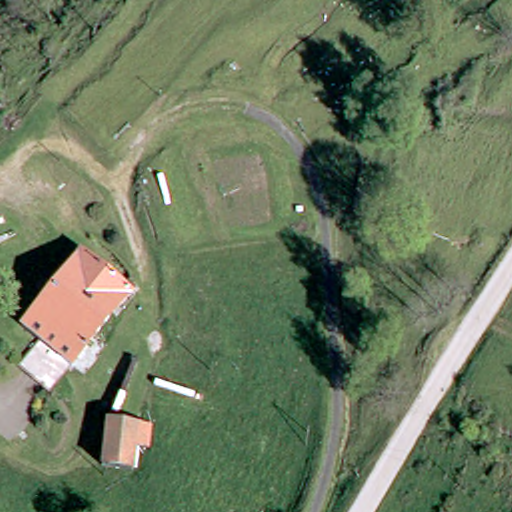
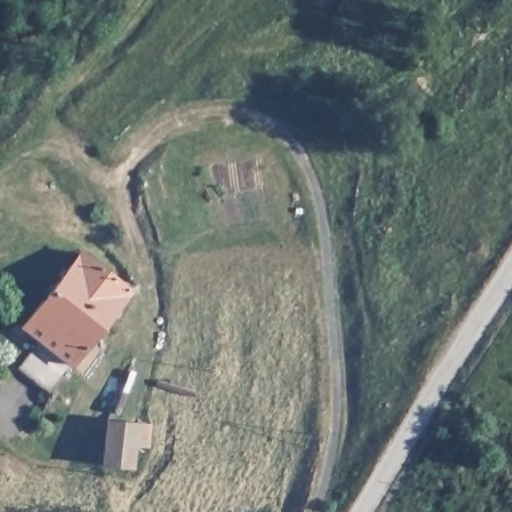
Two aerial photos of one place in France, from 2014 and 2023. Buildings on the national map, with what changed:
unchanged [(490,249),(482,257),(475,250),(481,242),(490,249)]
unchanged [(46,343),(28,326),(82,256),(106,275),(125,290),(131,285),(138,291),(133,295),(138,301),(124,317),(120,315),(54,392),(21,369),(46,343)]
unchanged [(150,435),(147,452),(142,451),(140,458),(137,476),(107,471),(116,430),(145,435),(150,435)]

